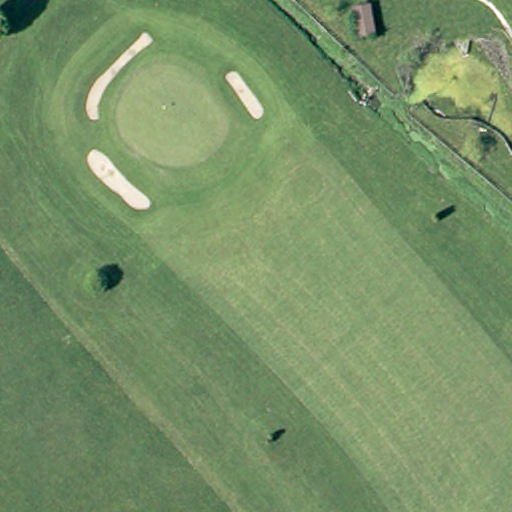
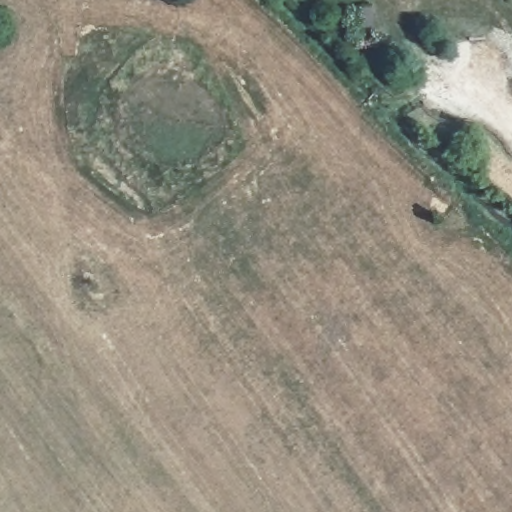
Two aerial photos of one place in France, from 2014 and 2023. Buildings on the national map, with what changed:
unchanged [(370,5),(375,35),(356,38),(352,8),(370,5)]

